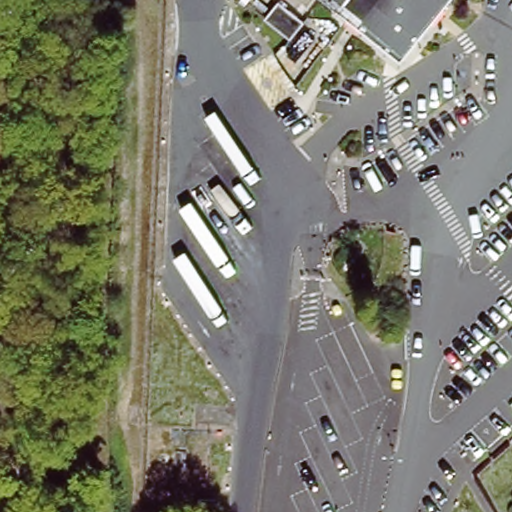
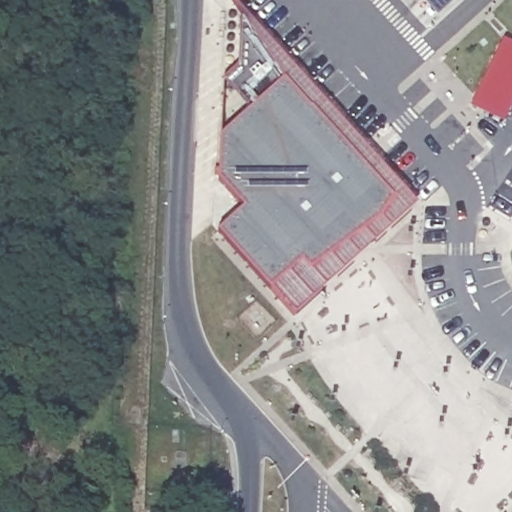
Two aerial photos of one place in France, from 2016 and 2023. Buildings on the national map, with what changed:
demolished [(321,0),(449,0),(400,62),(321,0)]
new [(422,0),(456,0),(437,16),(422,0)]
demolished [(303,21),(288,39),(263,19),(278,1),(303,21)]
new [(294,315),(216,231),(242,208),(215,178),(221,80),(236,66),(240,9),(417,205),(294,315)]
new [(503,124),(470,106),(502,39),(512,43),(512,106),(503,124)]

